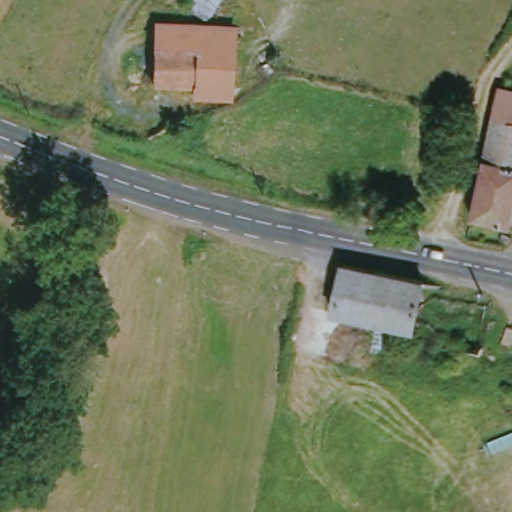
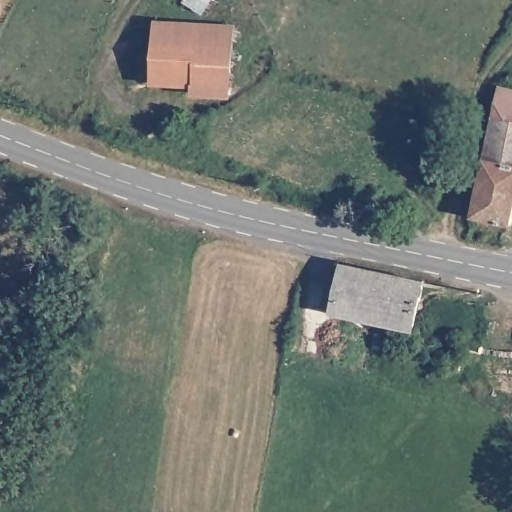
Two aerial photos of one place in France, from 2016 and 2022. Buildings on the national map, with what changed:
unchanged [(231,26),(232,64),(233,86),(200,87),(155,88),(154,53),(153,28),(231,26)]
unchanged [(501,84),(512,87),(512,117),(495,114),(501,84)]
unchanged [(512,211),(508,226),(471,217),(495,114),(512,117),(512,211)]
unchanged [(417,276),(410,323),(335,312),(342,266),(417,276)]
unchanged [(477,377),(445,373),(449,351),(480,356),(477,377)]

